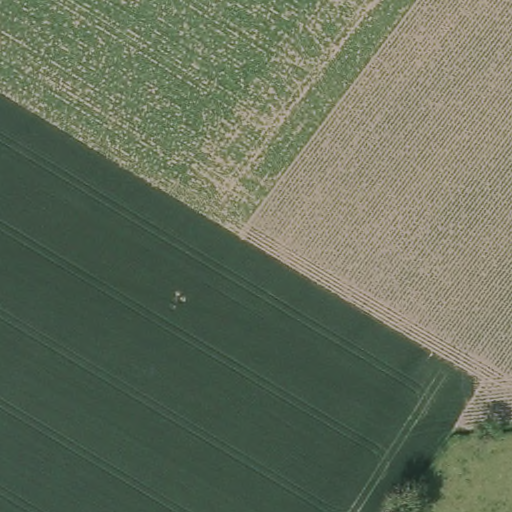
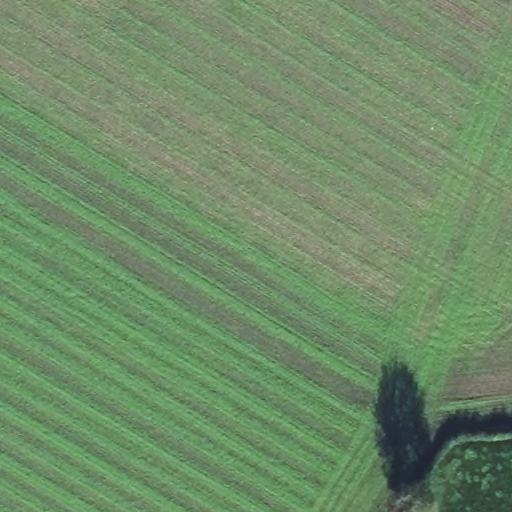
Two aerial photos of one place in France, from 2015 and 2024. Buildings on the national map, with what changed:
[]

